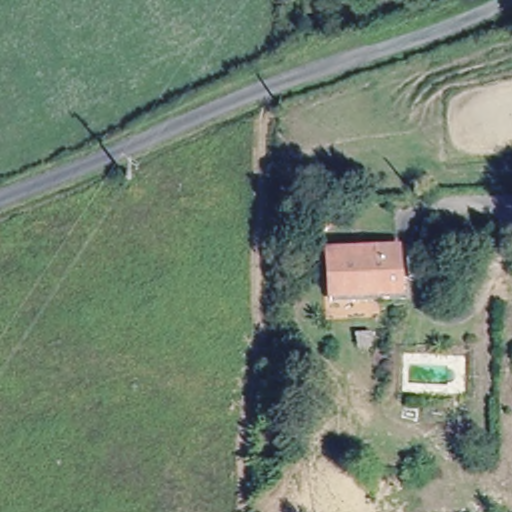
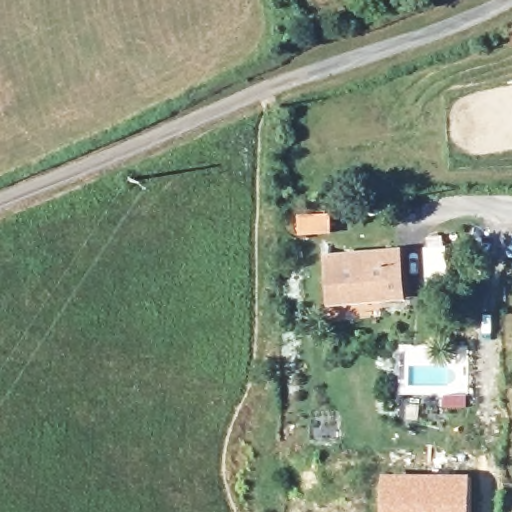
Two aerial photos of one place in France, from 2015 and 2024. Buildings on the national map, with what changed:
unchanged [(328,234),(301,233),(301,214),(328,214),(328,234)]
unchanged [(402,296),(330,301),(328,256),(399,251),(402,296)]
new [(470,512),(381,512),(381,473),(470,473),(470,512)]

